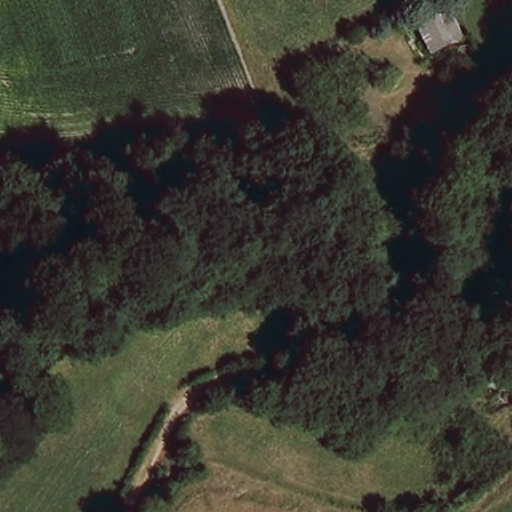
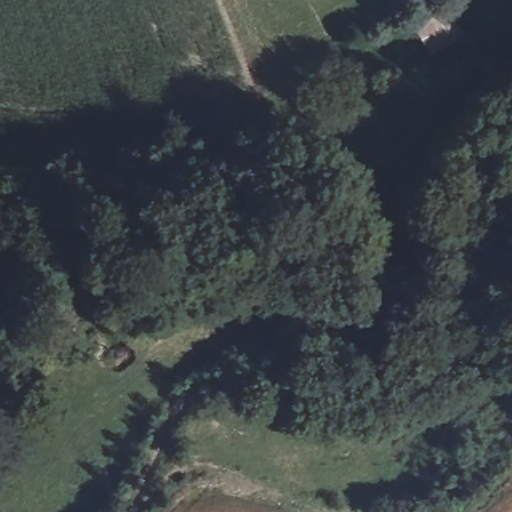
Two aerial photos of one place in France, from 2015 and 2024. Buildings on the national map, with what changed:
unchanged [(418,25),(445,12),(453,27),(446,30),(453,44),(431,54),(418,25)]

